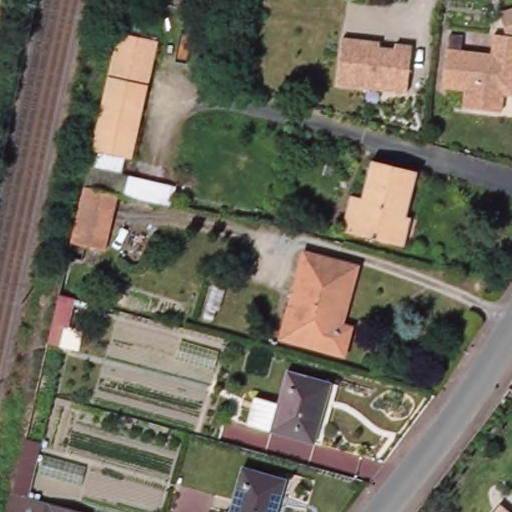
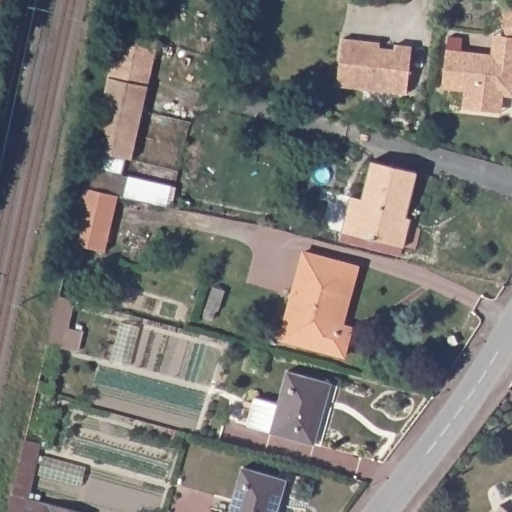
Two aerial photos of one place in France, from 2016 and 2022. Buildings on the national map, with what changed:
unchanged [(157,37),(131,154),(121,151),(92,145),(93,139),(118,27),(157,37)]
unchanged [(476,110),(465,109),(467,91),(444,89),(449,50),(494,55),(496,35),(512,37),(512,96),(506,95),(504,113),(498,112),(476,110)]
unchanged [(342,37),(380,41),(379,46),(394,48),(395,43),(412,45),(406,92),(336,84),(342,37)]
unchanged [(121,151),(117,170),(176,182),(171,203),(118,190),(83,182),(92,145),(121,151)]
unchanged [(404,223),(409,225),(404,246),(341,231),(349,196),(361,199),(370,160),(416,171),(404,223)]
unchanged [(105,246),(70,239),(83,182),(118,190),(105,246)]
unchanged [(290,317),(308,251),(362,265),(356,288),(347,324),(356,326),(354,333),(348,356),(301,343),(284,339),(290,317)]
unchanged [(57,343),(62,324),(69,295),(83,298),(76,327),(72,326),(68,346),(57,343)]
unchanged [(314,443),(246,425),(254,397),(278,403),(288,371),(330,382),(314,443)]
unchanged [(17,489),(25,455),(30,433),(46,436),(41,460),(32,493),(75,504),(95,510),(94,512),(12,512),(17,489)]
unchanged [(279,512),(232,512),(247,461),(290,475),(279,512)]
unchanged [(499,510),(502,512),(498,512),(499,510)]

